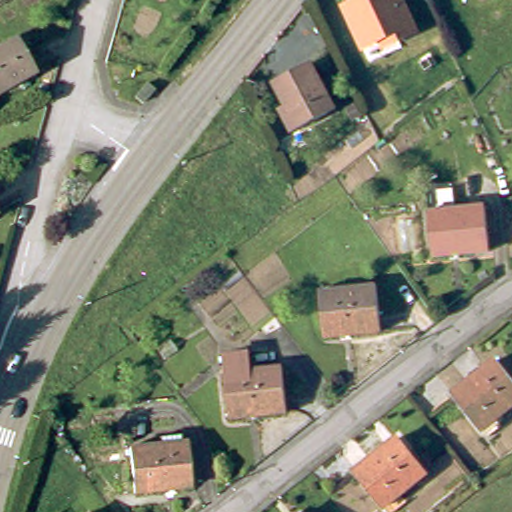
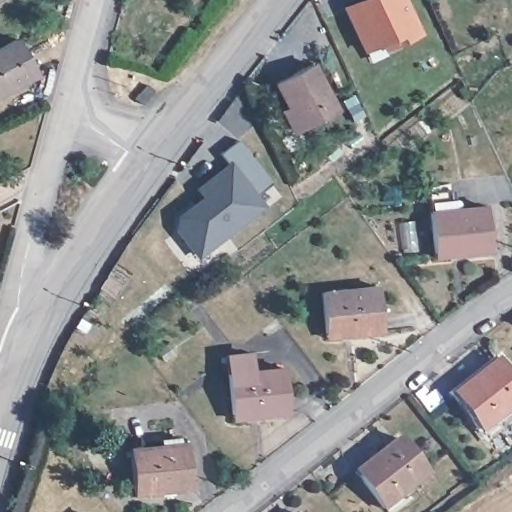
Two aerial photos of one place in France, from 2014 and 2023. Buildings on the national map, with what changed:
unchanged [(375,41),(358,49),(339,9),(356,1),(355,0),(397,0),(412,32),(393,41),(379,48),(375,41)]
unchanged [(18,84),(0,95),(0,47),(17,38),(32,65),(37,73),(18,84)]
unchanged [(300,130),(275,83),(313,63),(337,110),(300,130)]
new [(257,193),(266,205),(198,259),(175,231),(176,214),(202,193),(197,187),(227,162),(220,153),(238,138),(272,182),(257,193)]
unchanged [(434,252),(430,211),(487,205),(492,252),(459,255),(434,258),(434,252)]
unchanged [(326,332),(321,292),(377,285),(382,332),(351,336),(327,338),(326,332)]
unchanged [(233,419),(227,358),(253,356),(255,375),(302,370),(304,394),(286,396),(288,419),(258,422),(233,425),(233,419)]
unchanged [(485,431),(484,432),(454,394),(498,360),(512,378),(512,409),(497,421),(503,429),(490,439),(485,431)]
unchanged [(388,512),(385,508),(357,472),(400,438),(428,475),(401,495),(408,504),(397,512),(388,512)]
unchanged [(168,491),(135,494),(131,449),(186,443),(190,483),(191,489),(168,491)]

